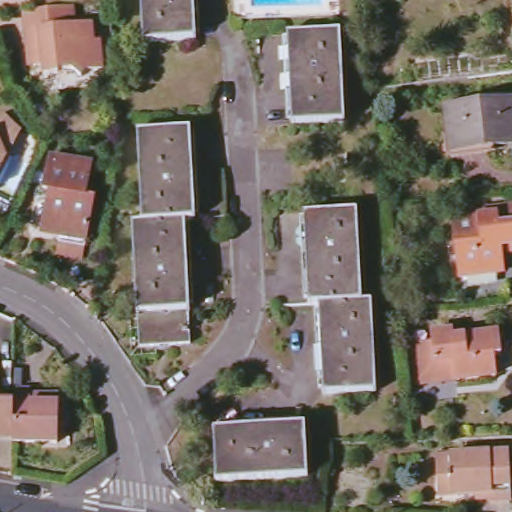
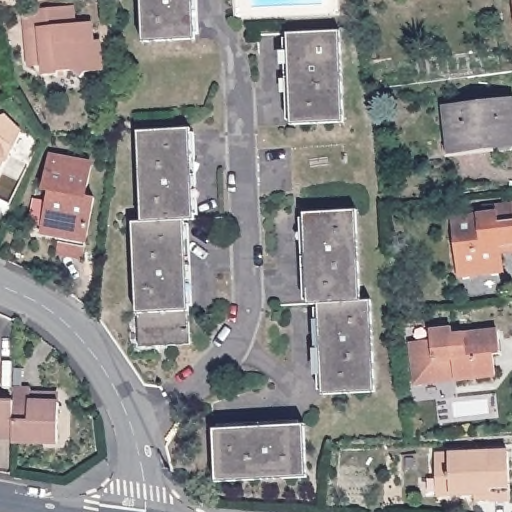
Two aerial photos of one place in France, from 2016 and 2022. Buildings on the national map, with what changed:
unchanged [(195,43),(145,44),(143,0),(193,0),(195,43)]
unchanged [(92,43),(98,43),(100,72),(87,73),(80,79),(68,73),(55,73),(55,77),(42,77),(42,66),(32,67),(31,51),(25,51),(22,30),(21,14),(72,9),(73,26),(90,25),(92,43)]
unchanged [(342,32),(343,121),(290,123),(288,34),(342,32)]
unchanged [(512,110),(512,152),(453,158),(450,115),(512,110)]
unchanged [(17,135),(20,138),(7,164),(0,179),(0,127),(7,124),(17,135)]
unchanged [(193,133),(194,225),(185,225),(190,316),(187,316),(188,348),(140,348),(138,318),(137,318),(134,226),(140,226),(139,134),(193,133)]
unchanged [(92,166),(88,197),(95,198),(86,258),(59,254),(60,237),(43,234),(49,194),(43,194),(50,159),(92,166)]
unchanged [(505,257),(507,275),(460,280),(452,221),(483,218),(482,212),(512,209),(512,257),(505,257)]
unchanged [(357,213),(357,302),(368,302),(372,393),(322,394),(318,303),(307,303),(305,214),(357,213)]
unchanged [(433,345),(432,336),(453,334),(455,342),(499,337),(502,359),(495,360),(496,379),(417,388),(413,347),(433,345)]
unchanged [(16,372),(22,372),(23,387),(16,387),(16,372)]
unchanged [(32,391),(32,395),(61,395),(61,403),(61,444),(16,444),(16,439),(16,432),(16,402),(16,391),(32,391)]
unchanged [(16,432),(16,439),(0,439),(0,402),(16,402),(16,432)]
unchanged [(303,429),(305,481),(215,483),(215,432),(303,429)]
unchanged [(475,497),(452,498),(451,491),(436,492),(436,478),(434,456),(507,451),(510,500),(490,501),(475,502),(475,497)]

